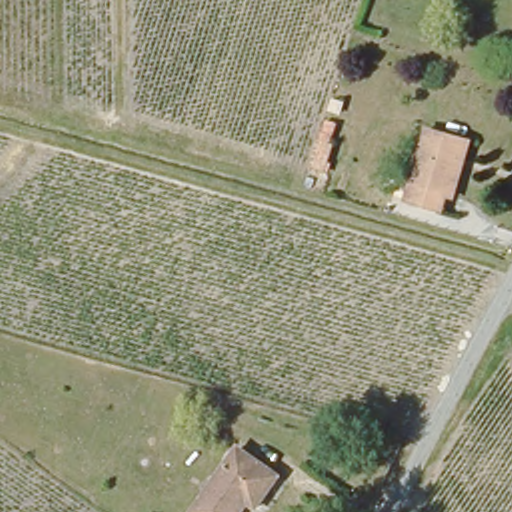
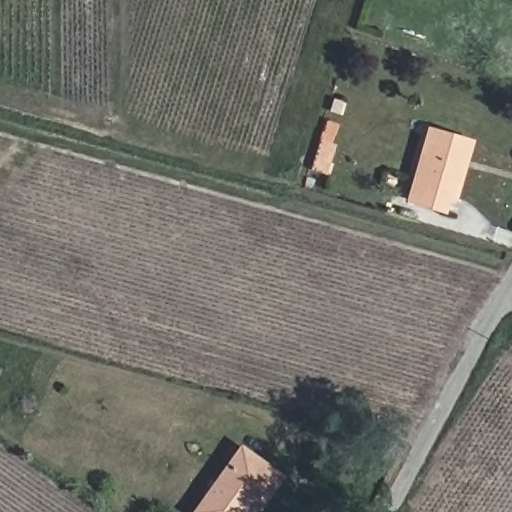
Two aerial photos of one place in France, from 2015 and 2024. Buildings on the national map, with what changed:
unchanged [(327,122),(337,126),(332,146),(335,146),(325,180),(310,171),(327,122)]
unchanged [(443,196),(438,211),(405,200),(427,131),(467,142),(461,161),(451,198),(443,196)]
unchanged [(273,472),(252,504),(260,509),(258,512),(200,512),(241,449),(273,472)]

